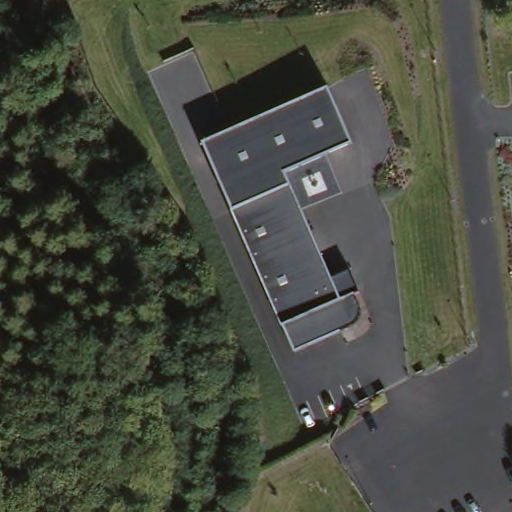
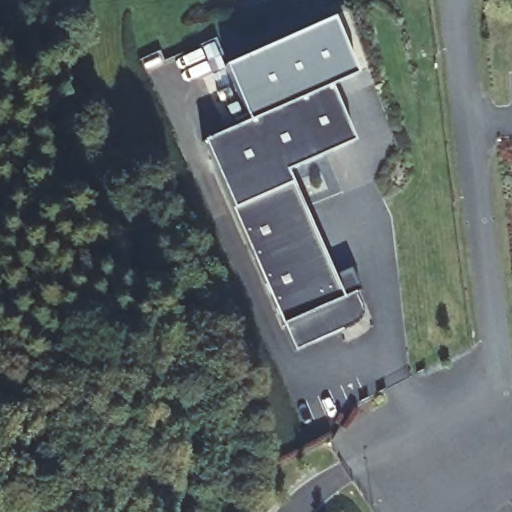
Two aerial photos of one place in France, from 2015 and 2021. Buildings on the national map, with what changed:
new [(226,68),(330,22),(356,76),(249,123),(226,68)]
unchanged [(204,142),(327,89),(351,142),(286,171),(290,187),(230,213),(204,142)]
unchanged [(230,213),(290,187),(340,304),(356,298),(366,325),(296,359),(230,213)]

